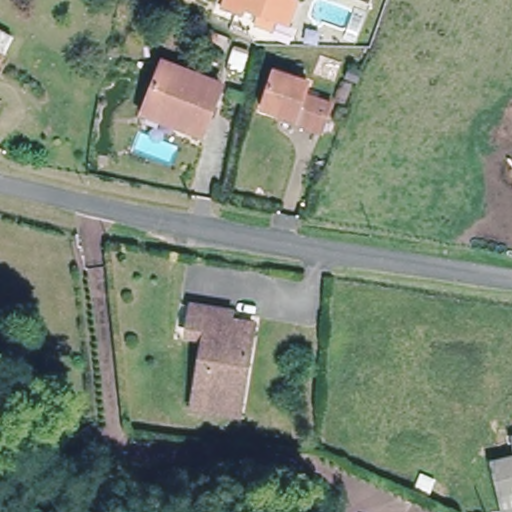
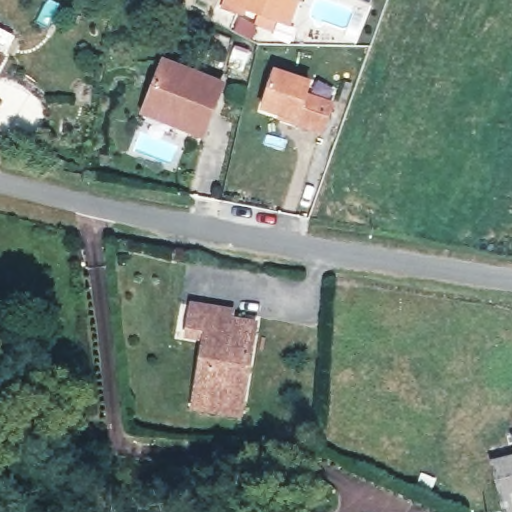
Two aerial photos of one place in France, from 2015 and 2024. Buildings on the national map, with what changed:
unchanged [(286,17),(280,15),(277,24),(261,18),(263,9),(250,4),(248,8),(229,1),(230,0),(301,0),(293,20),(286,17)]
unchanged [(13,38),(0,62),(0,30),(13,38)]
unchanged [(167,65),(221,85),(200,134),(147,113),(167,65)]
unchanged [(321,131),(308,128),(294,123),(296,119),(265,109),(277,72),(307,82),(304,93),(317,98),(332,102),(321,131)]
unchanged [(195,409),(197,395),(206,339),(187,337),(192,308),(231,314),(229,322),(255,326),(252,340),(242,402),(241,416),(195,409)]
unchanged [(82,431),(92,427),(95,434),(85,438),(82,431)]
unchanged [(512,459),(512,510),(500,462),(512,459)]

